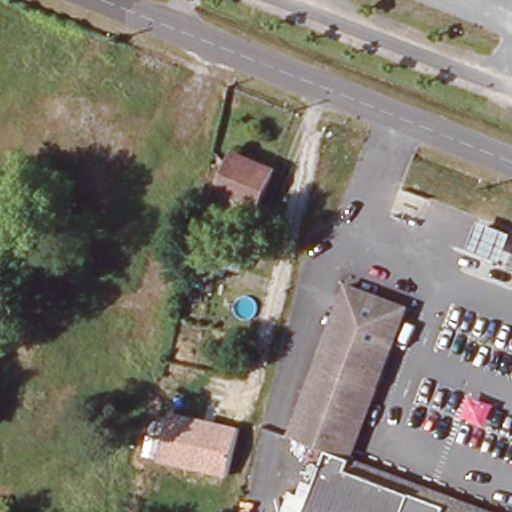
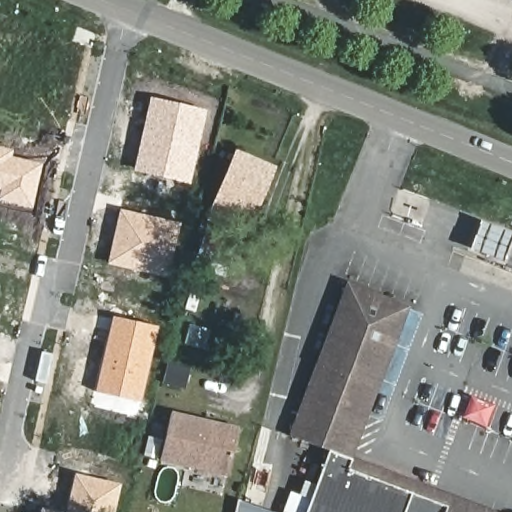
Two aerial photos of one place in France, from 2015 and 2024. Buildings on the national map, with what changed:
new [(206,110),(190,184),(134,172),(150,96),(206,110)]
new [(0,201),(2,190),(0,190),(0,147),(10,149),(9,158),(40,165),(30,208),(0,201)]
unchanged [(212,201),(233,153),(273,169),(252,218),(212,201)]
new [(119,209),(180,223),(168,277),(106,264),(119,209)]
unchanged [(192,256),(198,238),(240,252),(236,270),(192,256)]
unchanged [(346,280),(395,300),(365,379),(316,359),(346,280)]
new [(113,317),(157,327),(140,402),(96,392),(113,317)]
unchanged [(316,359),(365,379),(350,419),(301,400),(316,359)]
unchanged [(302,438),(288,432),(301,400),(350,419),(337,451),(326,447),(302,438)]
unchanged [(175,412),(240,428),(229,479),(160,464),(175,412)]
unchanged [(326,447),(337,451),(345,454),(348,456),(347,458),(445,497),(470,507),(485,512),(302,512),(326,447)]
new [(121,485),(116,512),(64,512),(73,473),(121,485)]
new [(271,512),(236,512),(239,499),(271,512)]
new [(41,509),(55,512),(40,512),(41,509)]

